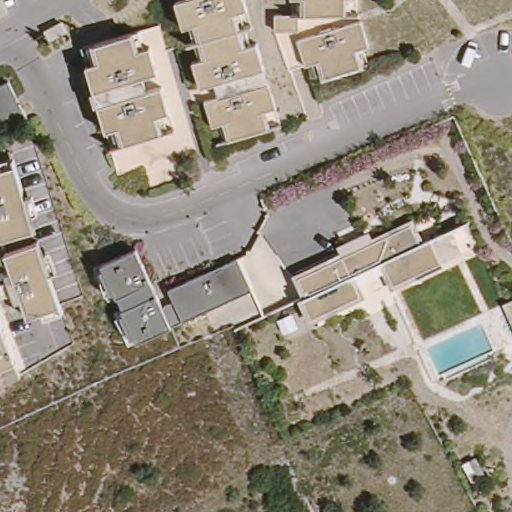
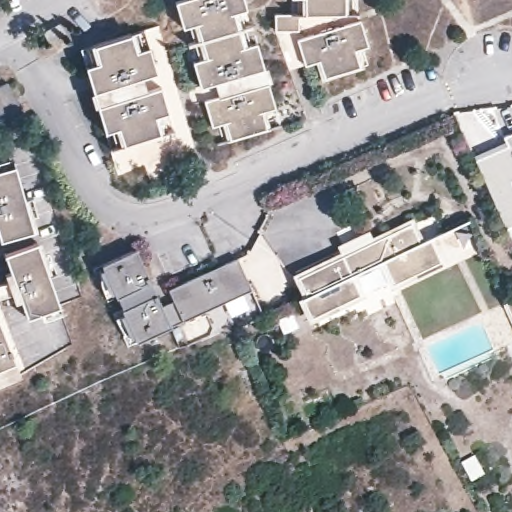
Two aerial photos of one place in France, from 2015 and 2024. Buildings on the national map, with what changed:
unchanged [(228,143),(222,130),(211,132),(201,104),(218,98),(213,87),(198,91),(188,63),(202,59),(193,29),(179,32),(171,2),(177,0),(243,0),(246,11),(232,16),(243,51),(257,49),(266,82),(274,109),(261,114),(266,131),(228,143)]
unchanged [(303,15),(301,1),(288,1),(288,0),(344,0),(344,16),(303,15)]
unchanged [(359,23),(368,49),(354,53),(359,72),(321,82),(314,66),(302,70),(296,41),(359,23)]
unchanged [(80,69),(94,64),(88,48),(131,36),(138,53),(149,50),(168,114),(156,118),(161,134),(119,146),(114,132),(101,135),(80,69)]
unchanged [(20,122),(0,128),(0,87),(7,85),(20,122)]
new [(509,149),(504,140),(512,136),(512,229),(507,231),(477,162),(509,149)]
unchanged [(20,200),(28,198),(33,214),(29,217),(34,232),(0,244),(0,161),(9,158),(20,200)]
unchanged [(339,256),(335,245),(366,232),(372,241),(409,221),(419,243),(450,231),(462,257),(417,281),(416,276),(389,287),(381,268),(353,280),(360,297),(306,321),(291,277),(339,256)]
unchanged [(13,306),(9,295),(0,298),(0,283),(5,282),(2,277),(7,273),(0,255),(38,244),(41,256),(48,254),(54,273),(46,275),(59,312),(43,320),(40,313),(25,322),(19,303),(13,306)]
unchanged [(98,263),(133,249),(158,308),(171,303),(165,290),(238,260),(249,291),(179,322),(168,327),(133,342),(98,263)]
unchanged [(503,304),(512,300),(512,328),(503,304)]
unchanged [(0,383),(0,333),(18,376),(0,383)]

